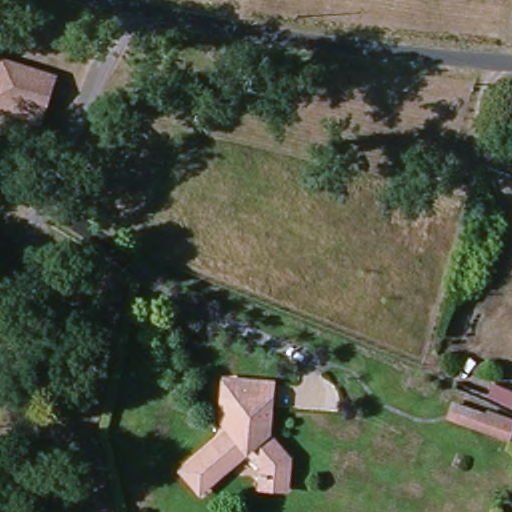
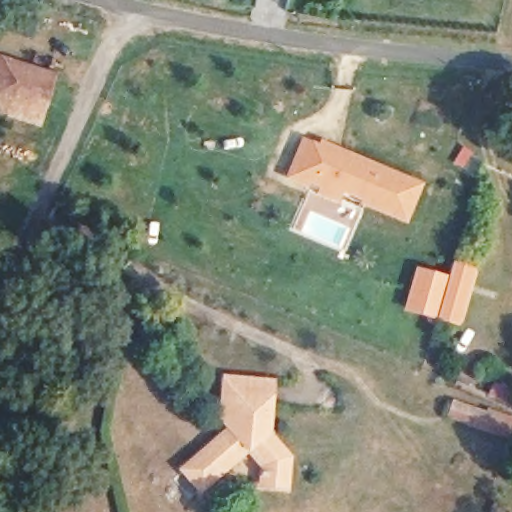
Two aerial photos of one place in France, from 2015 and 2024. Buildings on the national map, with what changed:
unchanged [(39,112),(0,99),(0,60),(51,75),(39,112)]
unchanged [(39,112),(35,125),(0,114),(0,99),(39,112)]
new [(307,185),(290,177),(304,142),(306,137),(343,152),(379,167),(421,185),(406,221),(364,203),(366,198),(341,188),(336,200),(322,194),(325,186),(309,180),(307,185)]
new [(419,270),(428,273),(447,279),(436,317),(408,309),(413,290),(419,270)]
demolished [(481,300),(477,309),(490,315),(473,351),(441,338),(461,292),(481,300)]
unchanged [(273,382),(272,394),(273,396),(270,434),(290,458),(288,489),(261,487),(263,467),(249,450),(201,492),(182,470),(231,428),(222,418),(223,399),(225,378),(273,382)]
unchanged [(512,408),(488,396),(495,382),(512,390),(512,408)]
unchanged [(512,431),(510,435),(485,426),(453,415),(456,406),(487,418),(489,412),(512,420),(512,431)]

